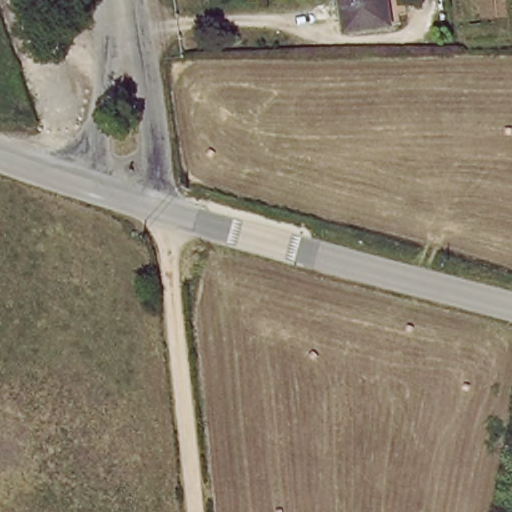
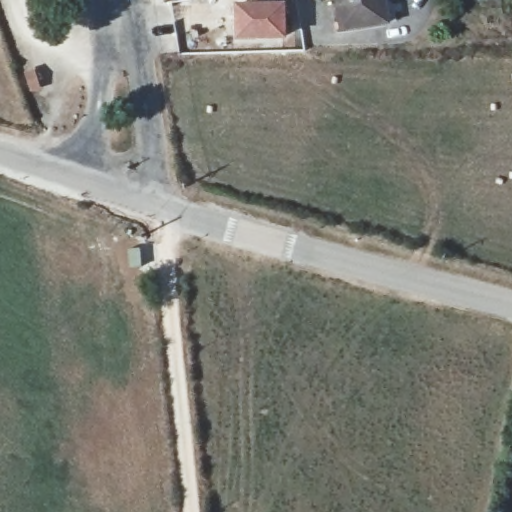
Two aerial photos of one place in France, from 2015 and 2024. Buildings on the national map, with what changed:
unchanged [(344,0),(389,0),(392,18),(360,23),(349,25),(347,17),(344,0)]
new [(285,2),(286,40),(234,42),(232,3),(285,2)]

